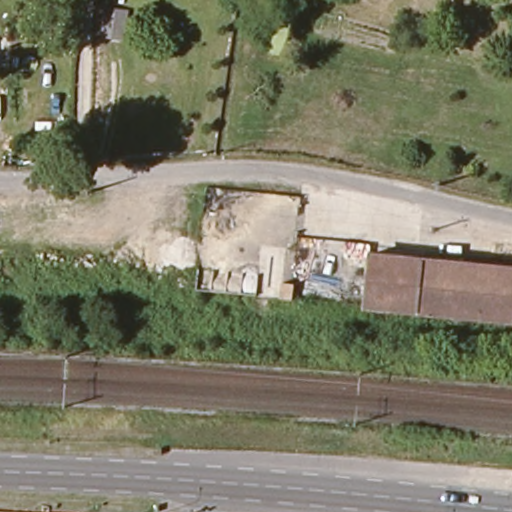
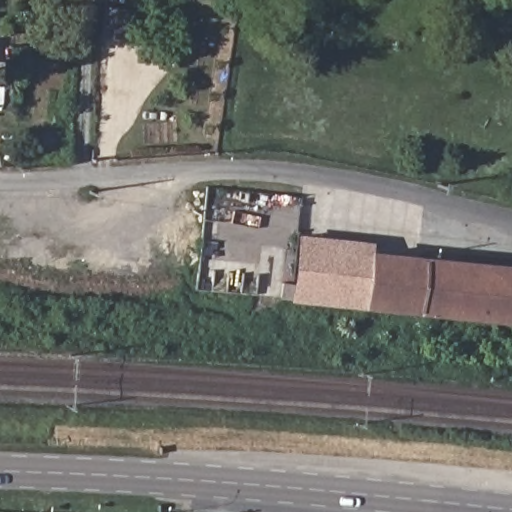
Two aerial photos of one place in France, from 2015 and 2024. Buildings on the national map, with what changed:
new [(364,305),(363,309),(290,302),(297,234),(371,241),(371,254),(364,305)]
unchanged [(512,322),(364,305),(371,254),(512,270),(512,322)]

